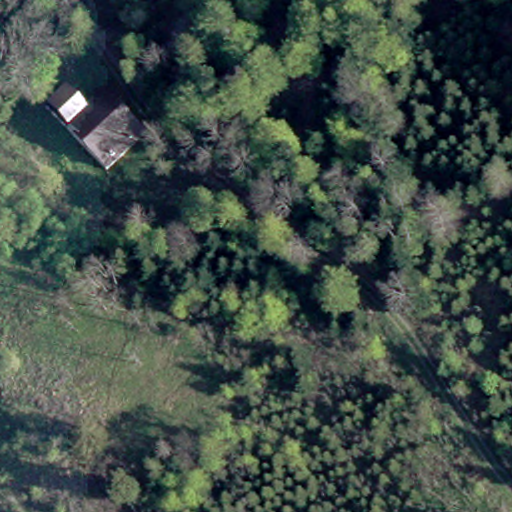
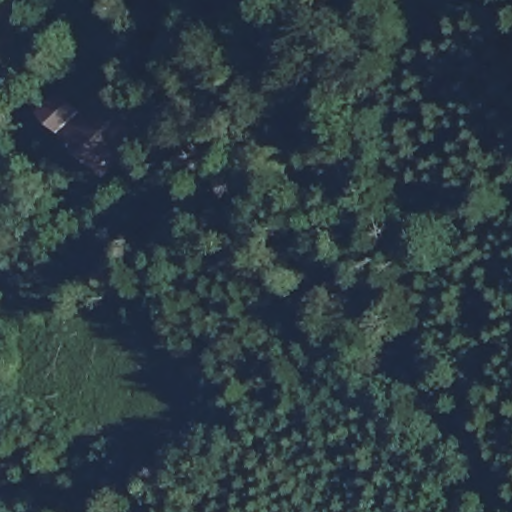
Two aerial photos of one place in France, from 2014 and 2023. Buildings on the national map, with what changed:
unchanged [(39,98),(60,78),(85,104),(103,89),(142,130),(101,164),(39,98)]

